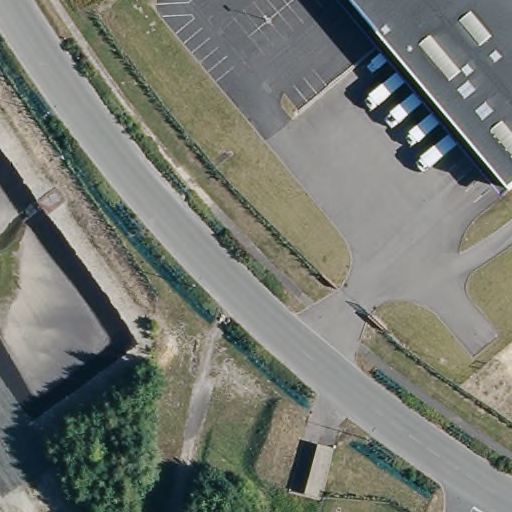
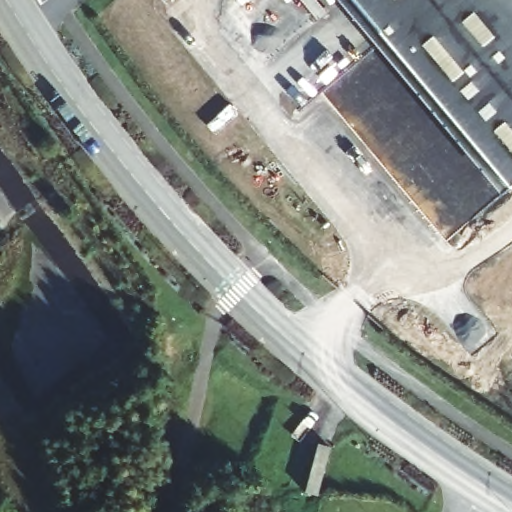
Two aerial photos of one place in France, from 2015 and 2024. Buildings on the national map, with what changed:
unchanged [(512,0),(512,189),(353,0),(512,0)]

